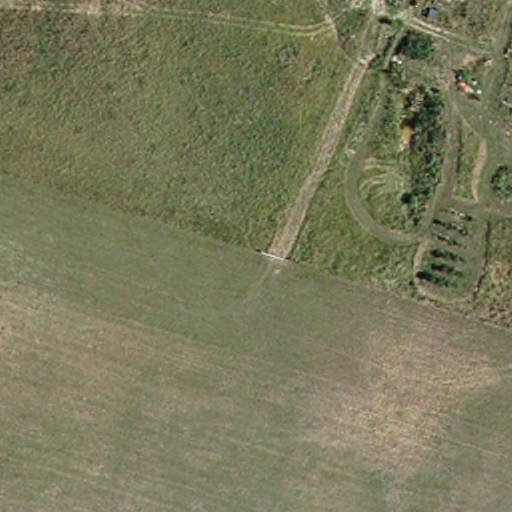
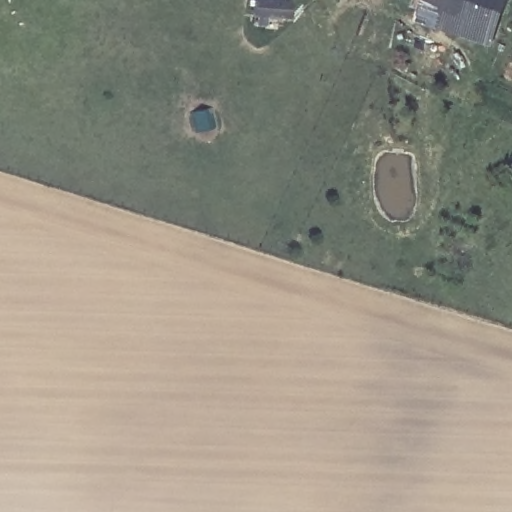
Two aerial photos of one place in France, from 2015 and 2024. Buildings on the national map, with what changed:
new [(494,45),(418,20),(424,0),(511,0),(494,45)]

